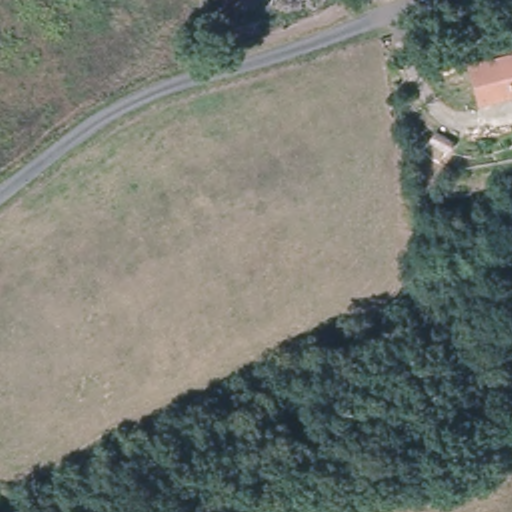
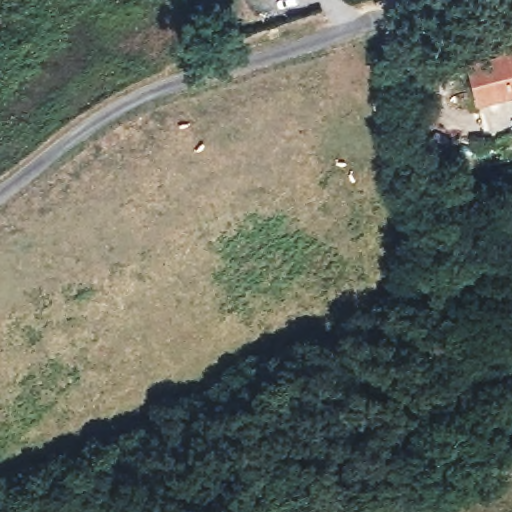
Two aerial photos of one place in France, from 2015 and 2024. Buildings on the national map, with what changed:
unchanged [(482,95),(473,56),(512,47),(512,88),(482,95)]

